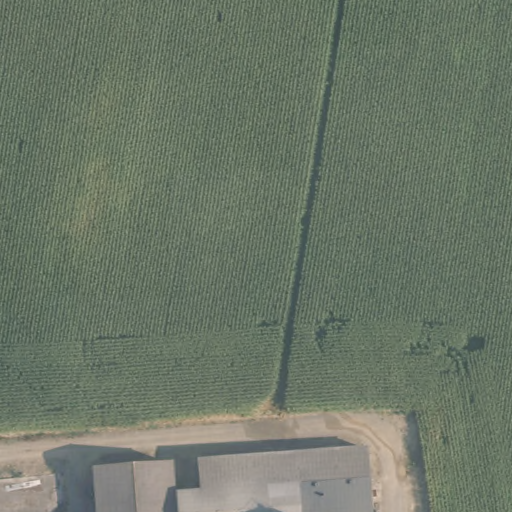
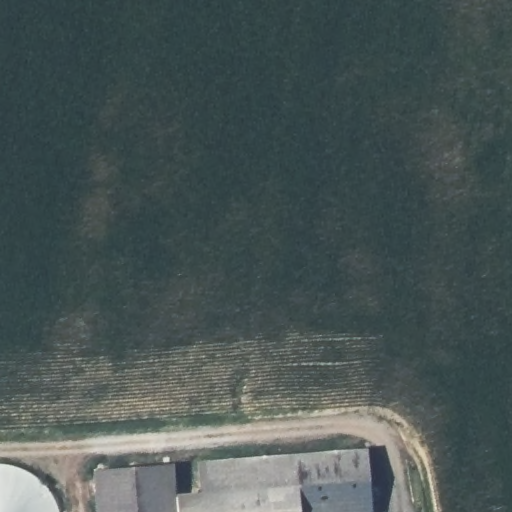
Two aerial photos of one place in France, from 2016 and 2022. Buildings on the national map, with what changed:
unchanged [(378,512),(207,512),(206,497),(204,465),(373,452),(378,512)]
unchanged [(184,498),(185,512),(107,512),(104,471),(181,466),(184,498)]
unchanged [(207,512),(185,512),(184,498),(206,497),(207,512)]

